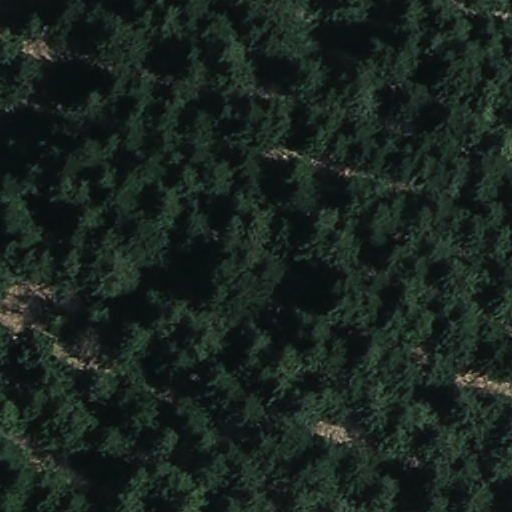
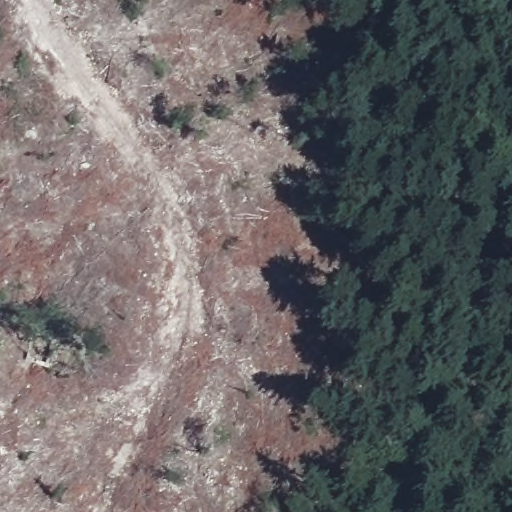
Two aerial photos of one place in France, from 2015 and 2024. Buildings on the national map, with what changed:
unchanged [(23,349),(0,343),(0,340),(9,310),(33,317),(23,349)]

